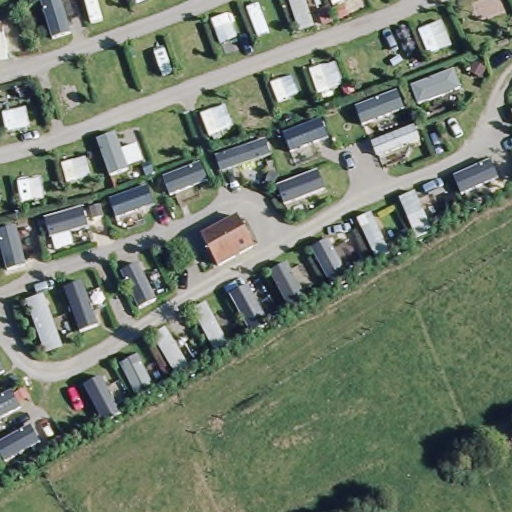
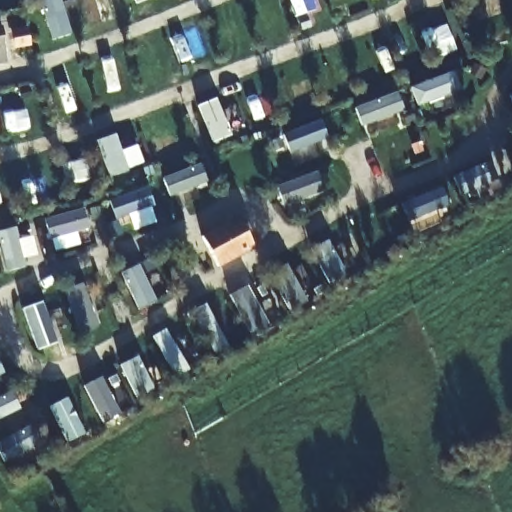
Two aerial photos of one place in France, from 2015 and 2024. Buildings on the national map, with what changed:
unchanged [(7,59),(0,60),(0,29),(2,29),(7,59)]
unchanged [(254,247),(217,267),(202,237),(238,217),(254,247)]

